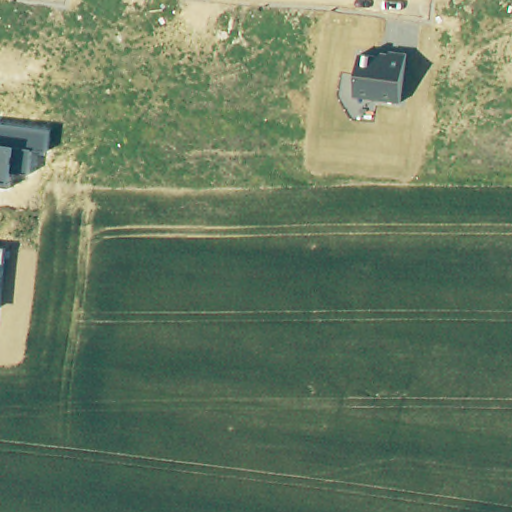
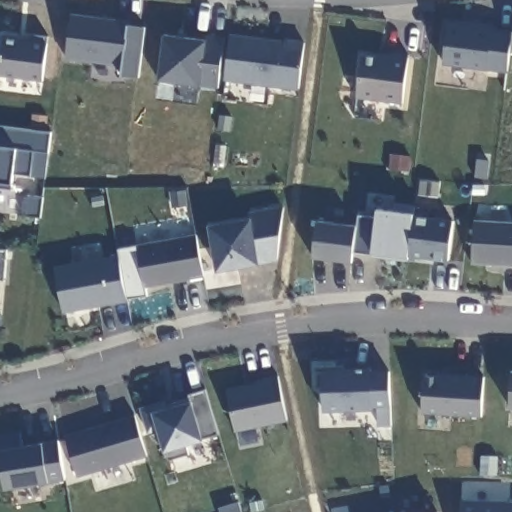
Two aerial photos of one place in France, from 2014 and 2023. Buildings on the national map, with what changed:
new [(137,76),(121,75),(122,64),(65,57),(71,12),(131,20),(131,25),(143,26),(137,76)]
new [(510,51),(507,71),(442,62),(447,23),(460,24),(462,18),(492,23),(491,27),(512,29),(512,52),(510,51)]
new [(216,86),(157,80),(163,32),(205,39),(206,34),(223,36),(216,86)]
unchanged [(297,89),(224,80),(230,33),(285,40),(286,38),(303,40),(297,89)]
unchanged [(0,75),(0,47),(2,36),(29,40),(29,34),(47,35),(41,80),(0,75)]
unchanged [(381,57),(382,52),(407,56),(402,104),(356,97),(360,55),(381,57)]
unchanged [(46,152),(32,150),(29,176),(12,174),(10,183),(10,189),(0,188),(0,126),(48,133),(46,152)]
new [(277,260),(217,271),(209,224),(251,217),(250,210),(282,206),(277,260)]
new [(411,257),(371,252),(355,250),(352,262),(314,257),(319,220),(357,225),(360,214),(374,217),(375,208),(416,213),(411,257)]
new [(512,221),(512,264),(471,262),(474,219),(512,221)]
new [(205,276),(144,287),(137,242),(197,234),(205,276)]
unchanged [(4,281),(0,281),(0,249),(6,249),(4,281)]
new [(62,314),(54,266),(119,253),(128,301),(62,314)]
new [(370,365),(370,370),(390,370),(392,424),(377,425),(376,407),(322,409),(321,367),(370,365)]
new [(510,406),(512,369),(512,407),(510,406)]
new [(436,374),(436,372),(485,375),(482,415),(422,411),(423,373),(436,374)]
new [(226,388),(262,380),(262,378),(277,375),(287,420),(236,430),(226,388)]
new [(204,440),(188,443),(191,453),(167,459),(165,450),(158,432),(150,434),(142,406),(206,389),(217,432),(204,440)]
new [(79,475),(67,434),(136,413),(148,455),(79,475)]
new [(4,488),(0,459),(0,433),(22,429),(24,445),(45,441),(60,438),(65,479),(49,482),(4,488)]
new [(461,500),(512,502),(512,512),(461,512),(461,500)]

